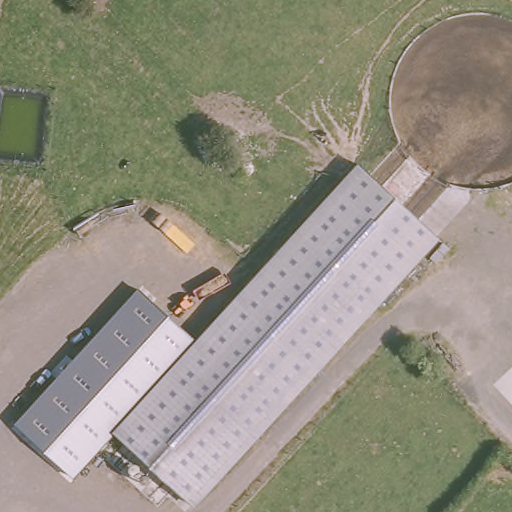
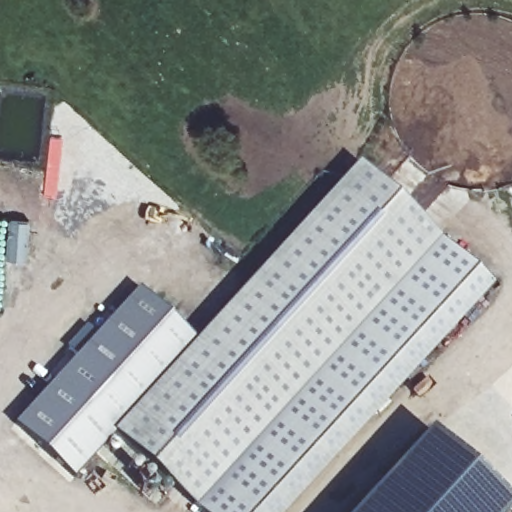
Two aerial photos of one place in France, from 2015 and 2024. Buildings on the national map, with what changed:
unchanged [(196,340),(357,164),(440,239),(194,507),(114,435),(74,478),(15,422),(138,288),(196,340)]
new [(485,283),(279,512),(199,512),(194,507),(440,239),(485,283)]
new [(507,507),(502,512),(353,512),(425,432),(507,507)]

